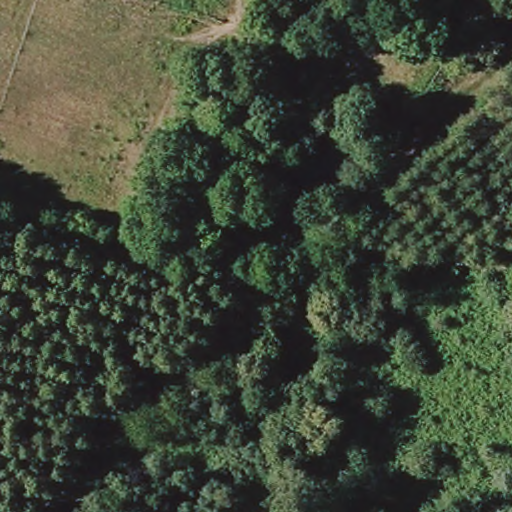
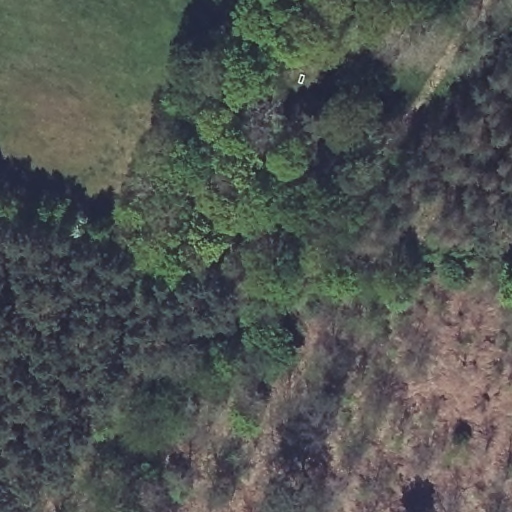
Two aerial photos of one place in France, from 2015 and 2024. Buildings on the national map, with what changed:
[]

